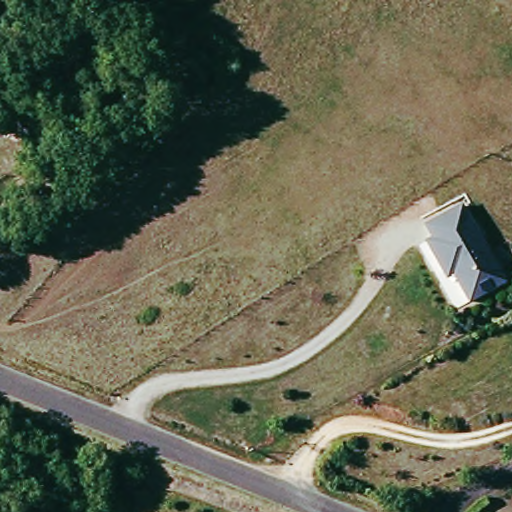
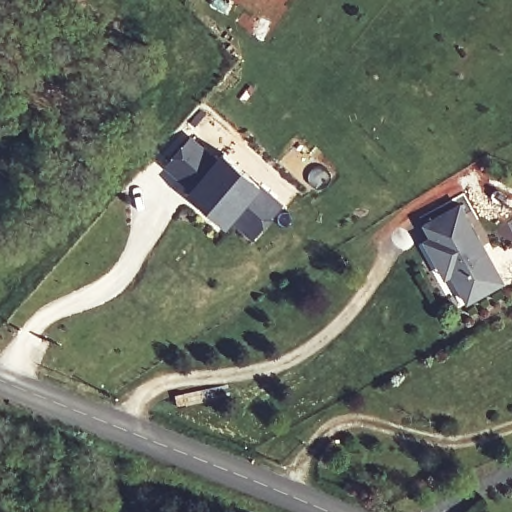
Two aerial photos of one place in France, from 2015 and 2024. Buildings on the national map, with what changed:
new [(187,190),(190,188),(164,165),(191,136),(217,159),(222,153),(260,185),(283,204),(253,239),(231,220),(226,225),(187,190)]
unchanged [(502,280),(467,301),(454,272),(445,275),(424,238),(428,235),(423,222),(460,204),(502,280)]

